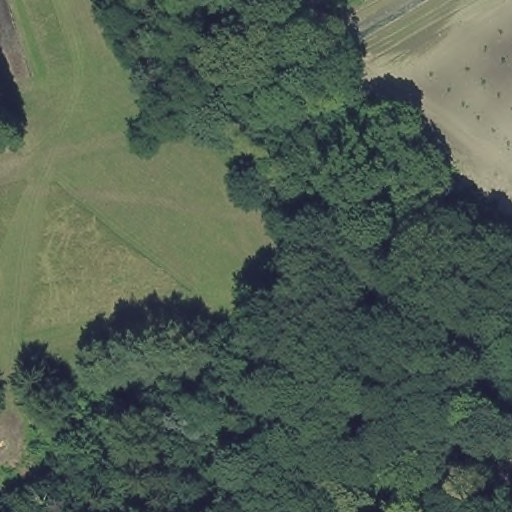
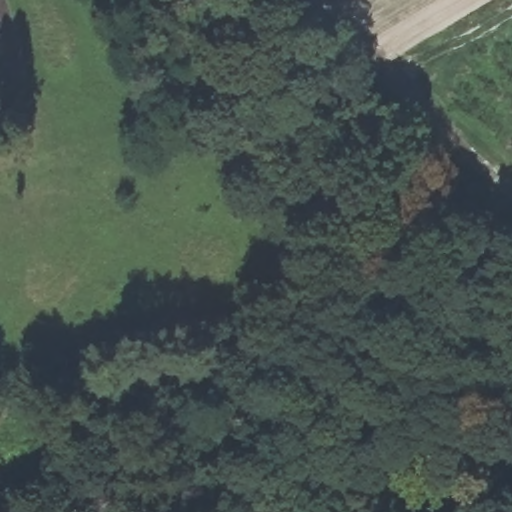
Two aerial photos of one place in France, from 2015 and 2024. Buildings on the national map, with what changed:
unchanged [(490,210),(512,224),(512,263),(475,242),(490,210)]

